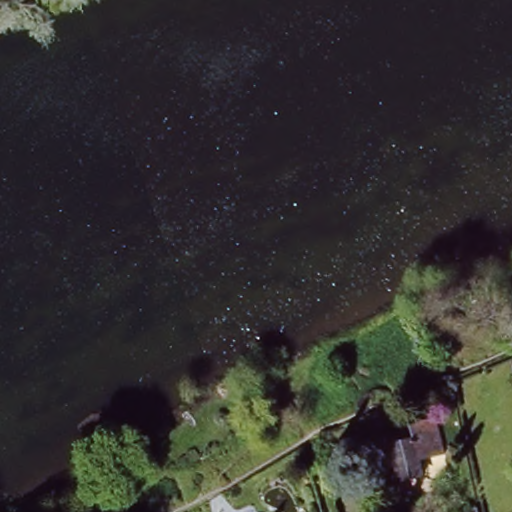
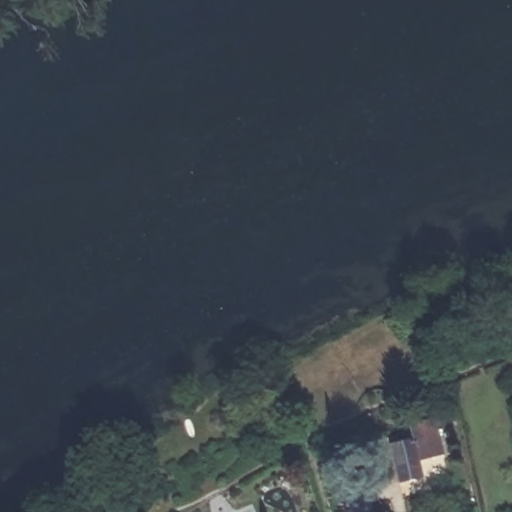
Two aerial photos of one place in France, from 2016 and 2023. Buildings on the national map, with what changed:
unchanged [(400,477),(392,442),(412,436),(409,421),(434,415),(443,455),(417,461),(420,472),(400,477)]

